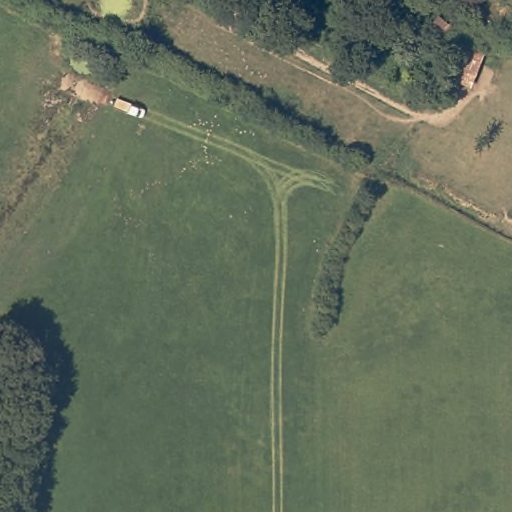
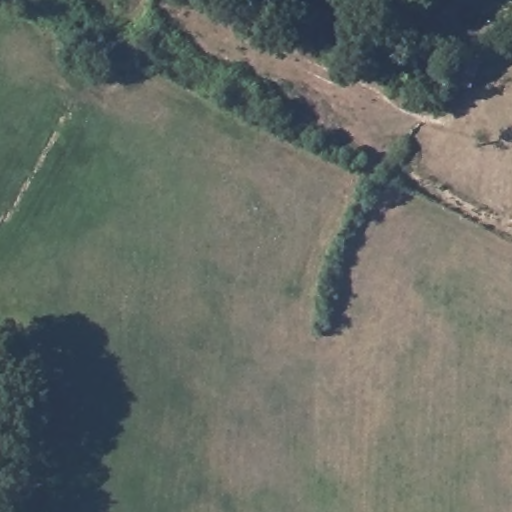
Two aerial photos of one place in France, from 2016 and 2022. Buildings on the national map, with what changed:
unchanged [(512,22),(512,43),(500,41),(502,21),(512,22)]

